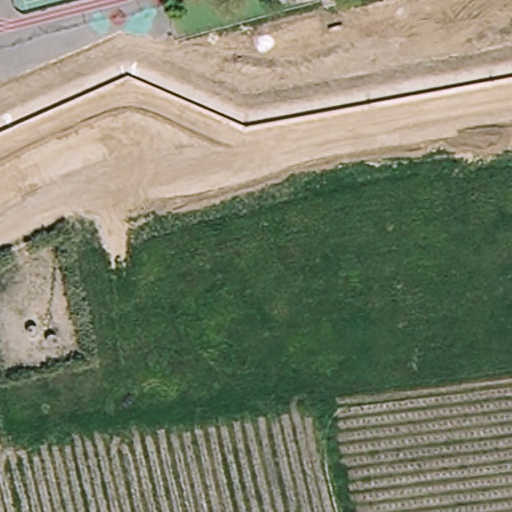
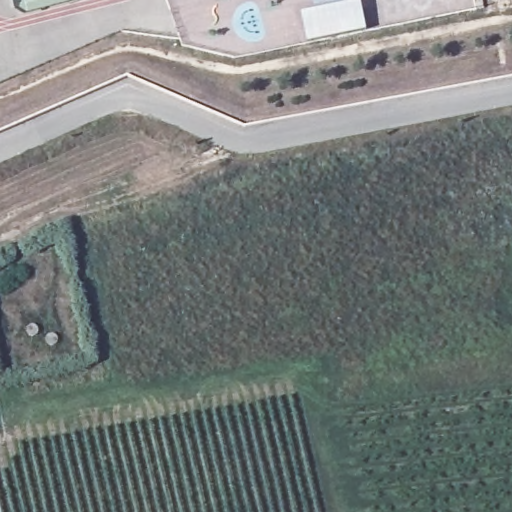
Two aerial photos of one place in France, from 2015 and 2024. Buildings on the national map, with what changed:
new [(312,42),(305,14),(362,1),(368,30),(312,42)]

